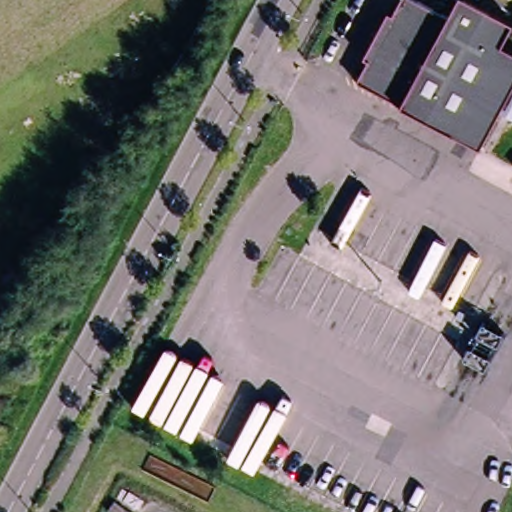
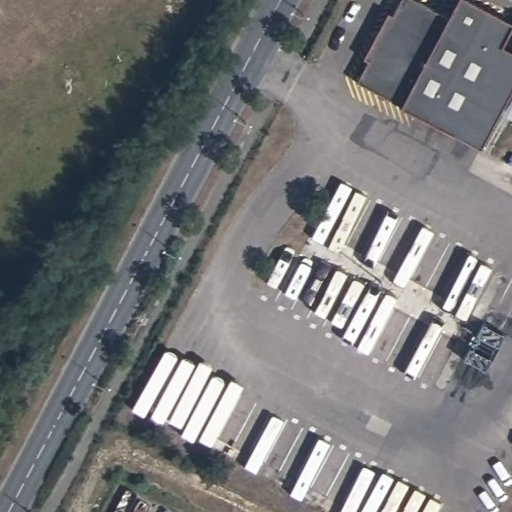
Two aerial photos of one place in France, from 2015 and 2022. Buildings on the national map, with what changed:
unchanged [(512,24),(501,46),(512,52),(512,87),(479,149),(355,82),(366,61),(361,59),(386,12),(391,15),(399,0),(414,0),(446,17),(455,0),(469,0),(512,23),(512,24)]

